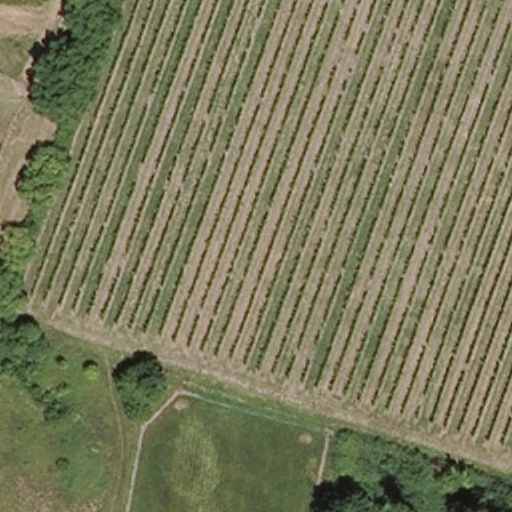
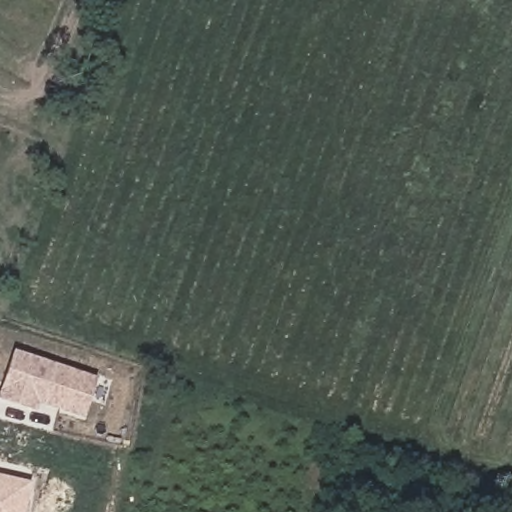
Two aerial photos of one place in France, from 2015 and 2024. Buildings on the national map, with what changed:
new [(0,400),(0,383),(12,349),(96,377),(80,419),(37,404),(35,411),(0,400)]
new [(23,512),(0,512),(0,474),(30,481),(23,512)]

